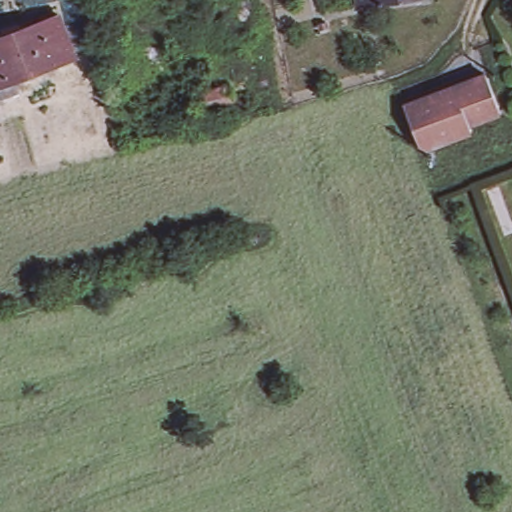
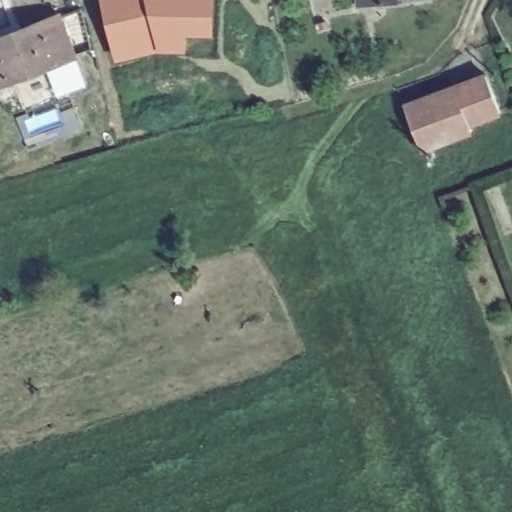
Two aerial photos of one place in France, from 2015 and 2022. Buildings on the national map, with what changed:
new [(212,30),(184,29),(184,47),(163,47),(119,58),(105,0),(212,0),(212,30)]
unchanged [(361,0),(404,0),(361,6),(361,0)]
unchanged [(0,98),(0,43),(23,35),(21,29),(58,15),(75,57),(13,81),(17,92),(0,98)]
unchanged [(456,87),(488,76),(502,113),(468,125),(456,87)]
demolished [(234,82),(238,104),(208,112),(201,92),(234,82)]
unchanged [(469,130),(418,147),(403,106),(456,87),(468,125),(469,130)]

